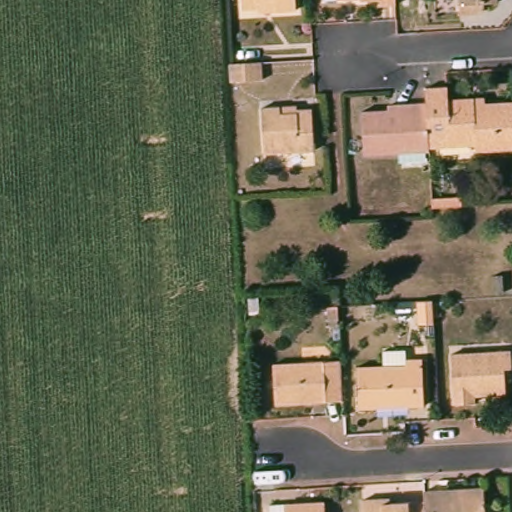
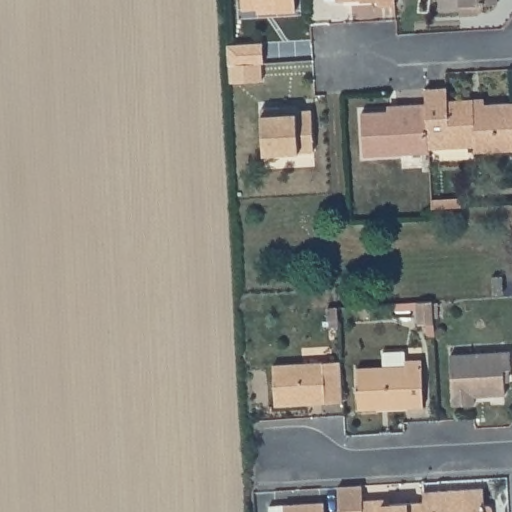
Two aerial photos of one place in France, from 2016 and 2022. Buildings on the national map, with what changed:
unchanged [(237,9),(237,0),(288,0),(288,9),(268,10),(252,10),(252,8),(237,9)]
unchanged [(392,0),(393,9),(376,9),(376,4),(335,2),(323,2),(322,0),(392,0)]
unchanged [(481,8),(481,17),(459,18),(458,0),(496,0),(497,7),(481,8)]
unchanged [(263,69),(264,85),(232,86),(231,70),(263,69)]
unchanged [(443,87),(443,100),(470,100),(470,106),(512,103),(512,150),(472,152),(472,146),(426,148),(424,100),(423,88),(443,87)]
unchanged [(385,101),(408,100),(424,100),(426,148),(427,152),(361,156),(359,110),(385,109),(385,101)]
unchanged [(290,107),(290,112),(306,110),(309,155),(258,157),(256,108),(271,107),(290,107)]
unchanged [(469,201),(469,212),(440,213),(439,202),(469,201)]
unchanged [(512,297),(503,297),(502,282),(512,282),(512,297)]
unchanged [(439,308),(440,332),(424,332),(423,310),(439,308)]
unchanged [(339,346),(338,334),(332,333),(332,315),(342,314),(343,334),(344,346),(339,346)]
unchanged [(357,412),(355,368),(382,367),(382,350),(405,350),(406,361),(419,361),(423,408),(406,410),(376,412),(357,412)]
unchanged [(508,351),(510,369),(501,371),(503,394),(470,397),(470,407),(451,407),(448,354),(508,351)]
unchanged [(340,362),(343,402),(276,406),(274,365),(340,362)]
unchanged [(410,496),(472,491),(472,512),(411,512),(410,501),(410,496)]
unchanged [(372,498),(372,503),(410,501),(411,512),(351,512),(351,500),(372,498)]
unchanged [(325,503),(325,512),(270,512),(270,505),(325,503)]

